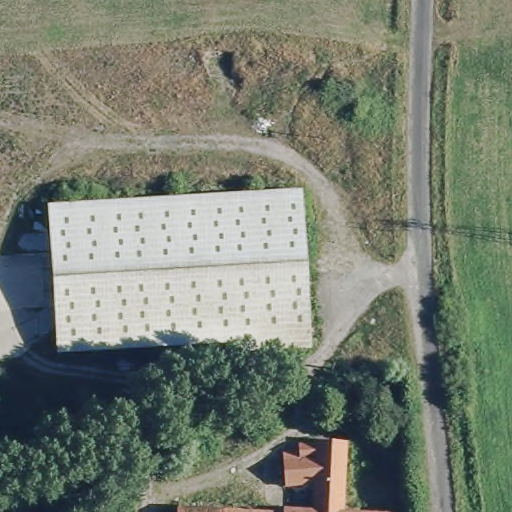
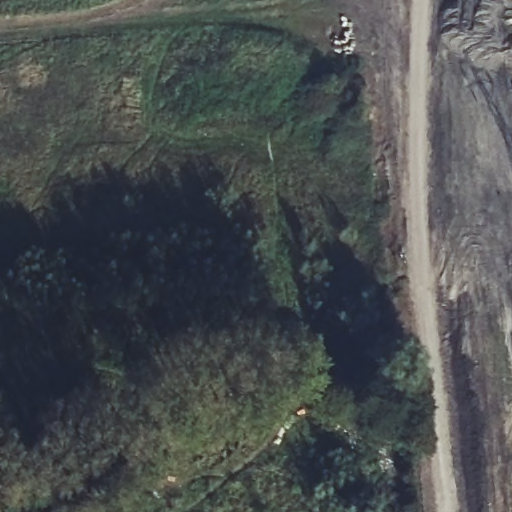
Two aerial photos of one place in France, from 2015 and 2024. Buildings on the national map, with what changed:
demolished [(47,213),(299,193),(309,347),(234,353),(233,344),(58,356),(47,213)]
demolished [(231,400),(243,400),(243,413),(231,413),(231,400)]
demolished [(168,407),(178,407),(181,444),(169,445),(168,407)]
demolished [(284,508),(314,509),(314,484),(288,483),(286,451),(304,451),(304,443),(321,444),(321,441),(349,443),(344,490),(344,512),(284,512),(284,508)]
demolished [(158,451),(164,451),(163,469),(158,469),(158,451)]
demolished [(181,504),(219,507),(284,512),(180,512),(181,504)]

